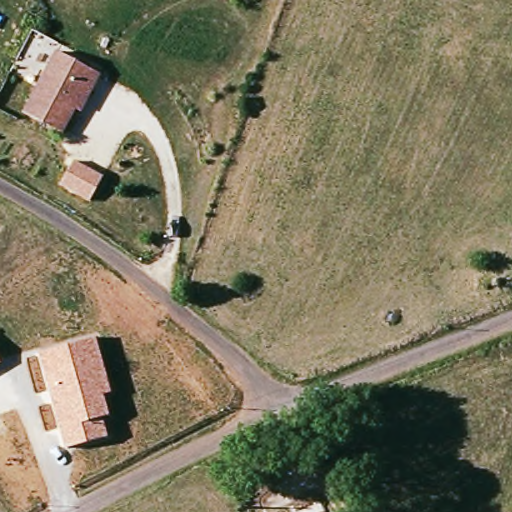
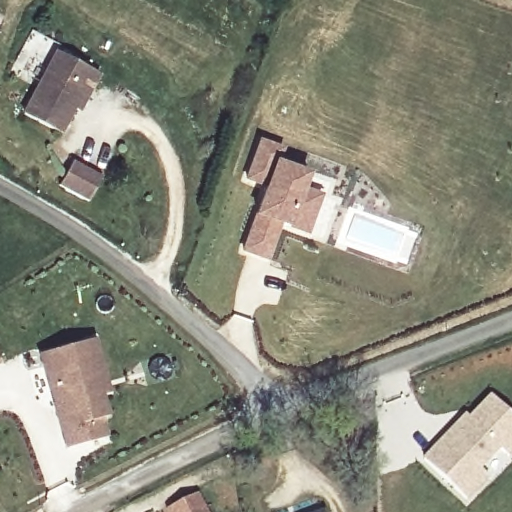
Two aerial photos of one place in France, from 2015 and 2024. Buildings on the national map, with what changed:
unchanged [(95,90),(88,86),(62,132),(27,111),(63,51),(102,72),(95,90)]
new [(251,214),(260,185),(240,178),(254,141),(275,149),(270,162),(301,174),(296,187),(315,195),(301,231),(274,222),(270,233),(261,257),(237,250),(247,225),(251,214)]
new [(73,160),(102,176),(88,201),(60,185),(73,160)]
unchanged [(65,447),(39,353),(95,336),(111,392),(103,394),(110,415),(103,416),(108,437),(65,447)]
new [(470,426),(492,403),(512,422),(512,460),(508,464),(501,456),(491,466),(480,477),(488,485),(467,507),(424,466),(446,443),(467,422),(470,426)]
new [(202,512),(170,512),(169,509),(195,497),(202,512)]

